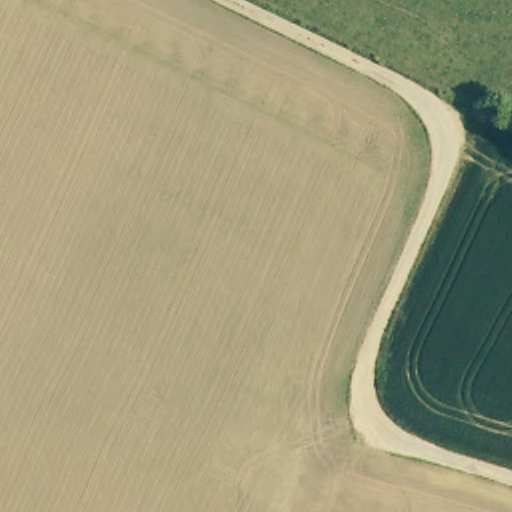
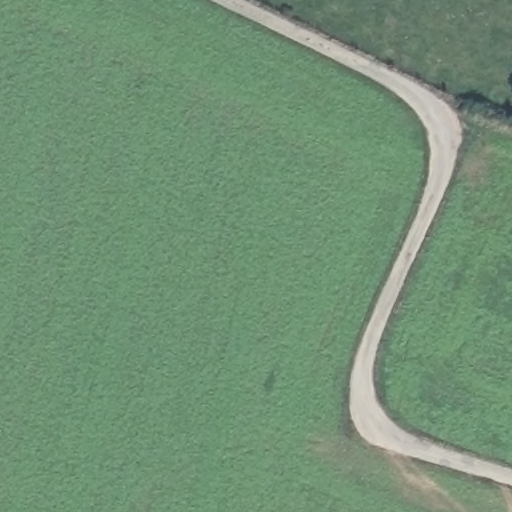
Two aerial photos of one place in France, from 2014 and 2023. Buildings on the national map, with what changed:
[]

